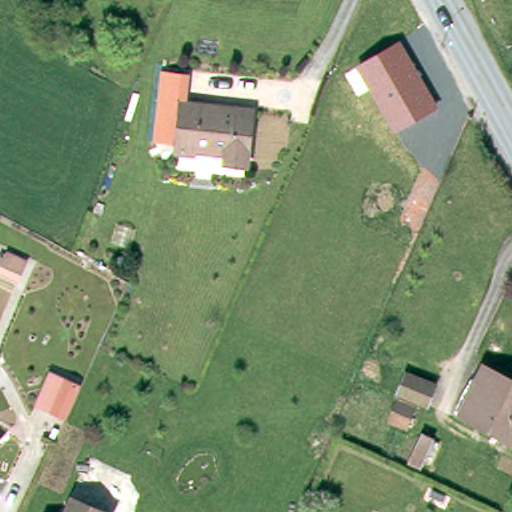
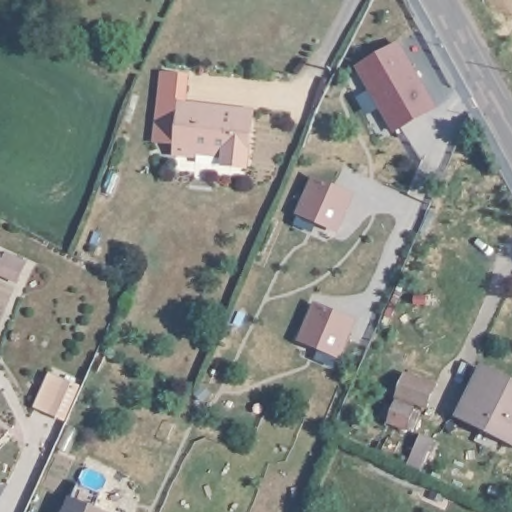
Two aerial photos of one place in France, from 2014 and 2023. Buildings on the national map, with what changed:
unchanged [(438,108),(392,133),(355,66),(400,40),(438,108)]
unchanged [(182,111),(178,145),(152,141),(161,68),(187,74),(183,106),(182,111)]
unchanged [(177,159),(178,150),(183,106),(252,115),(248,168),(223,165),(225,155),(198,151),(197,161),(177,159)]
new [(340,232),(297,215),(312,175),(356,194),(340,232)]
unchanged [(5,280),(0,277),(0,275),(5,265),(11,268),(13,263),(32,271),(24,290),(5,280)]
new [(340,357),(299,341),(315,302),(356,320),(340,357)]
unchanged [(468,413),(490,367),(512,378),(512,434),(468,413)]
unchanged [(80,385),(65,421),(32,407),(49,370),(80,385)]
unchanged [(398,397),(407,377),(432,387),(425,407),(398,397)]
unchanged [(390,423),(397,404),(415,411),(408,430),(390,423)]
unchanged [(414,463),(421,447),(425,435),(438,440),(433,451),(427,468),(414,463)]
unchanged [(71,498),(94,508),(103,512),(65,512),(71,498)]

